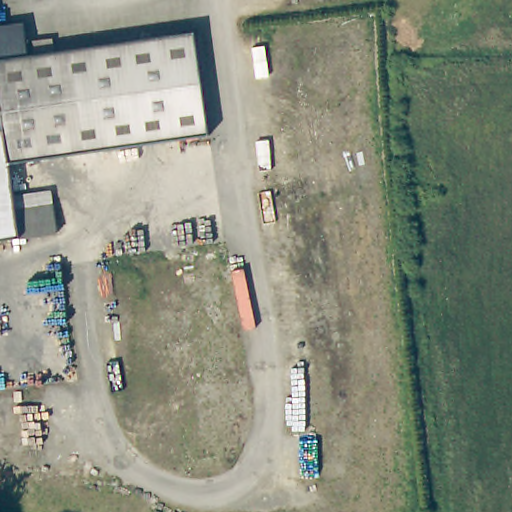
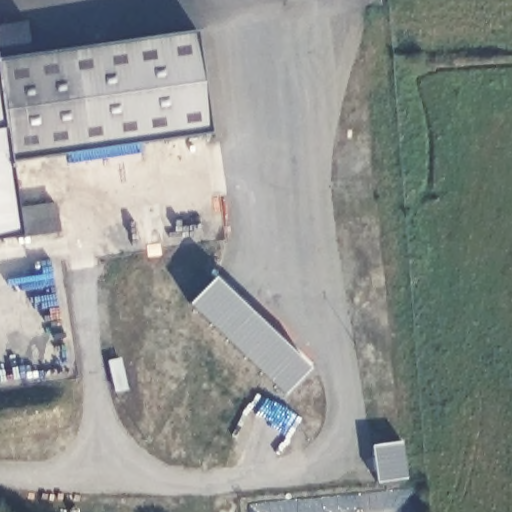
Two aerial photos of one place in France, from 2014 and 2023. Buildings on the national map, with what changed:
unchanged [(29,55),(0,59),(0,26),(25,22),(29,55)]
unchanged [(21,239),(0,241),(0,59),(29,55),(197,33),(212,146),(13,172),(19,219),(53,215),(56,234),(21,239)]
new [(213,277),(308,367),(283,394),(189,303),(213,277)]

